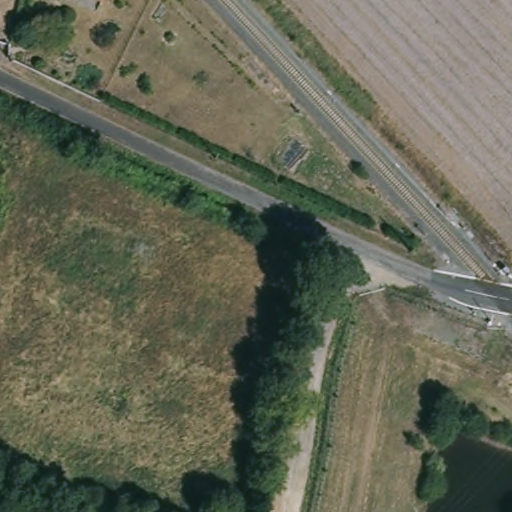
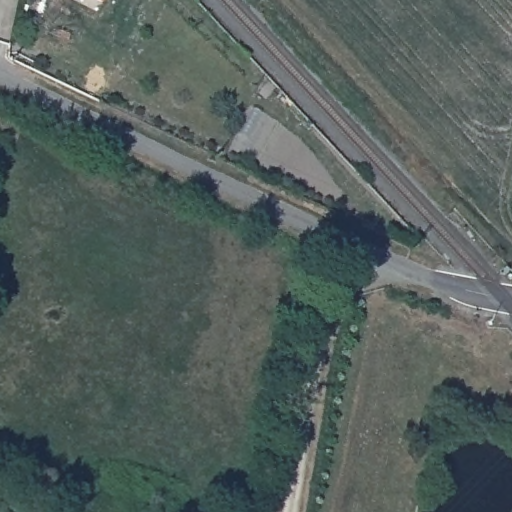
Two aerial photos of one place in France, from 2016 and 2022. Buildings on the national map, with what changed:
unchanged [(98,6),(86,0),(101,0),(98,6)]

